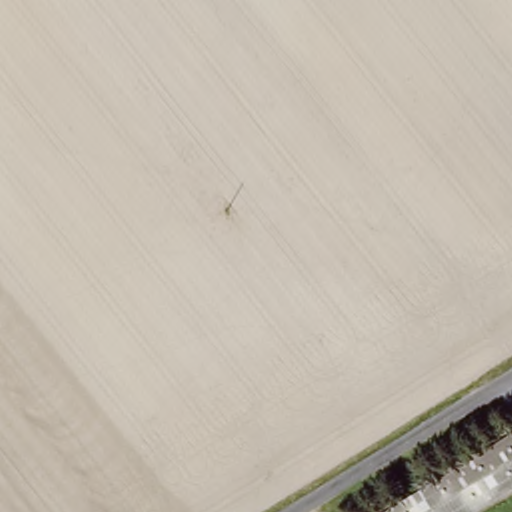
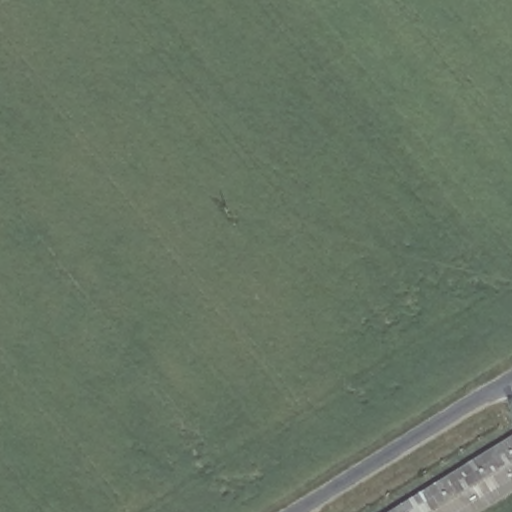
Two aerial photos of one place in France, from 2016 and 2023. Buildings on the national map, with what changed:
unchanged [(466,512),(387,512),(512,433),(512,483),(466,512)]

